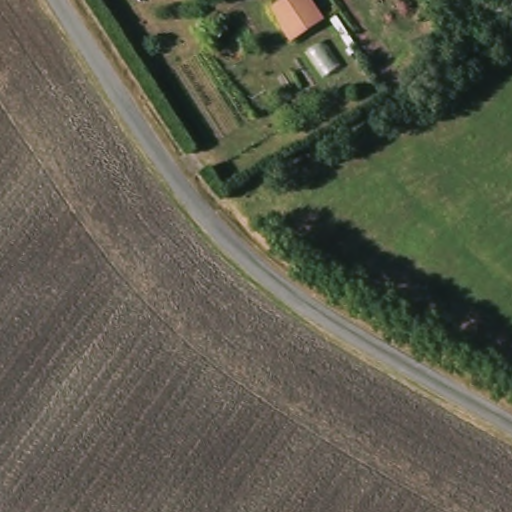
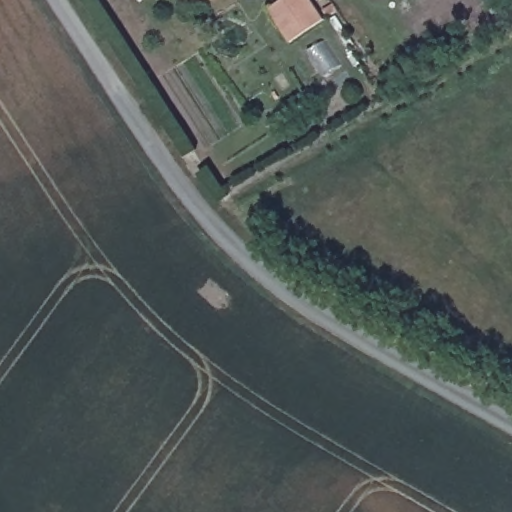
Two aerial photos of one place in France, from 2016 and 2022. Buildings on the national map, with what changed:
unchanged [(291,0),(316,0),(329,19),(296,41),(275,11),(291,0)]

